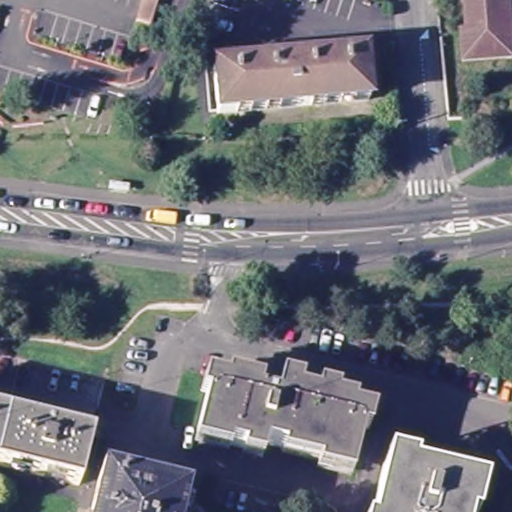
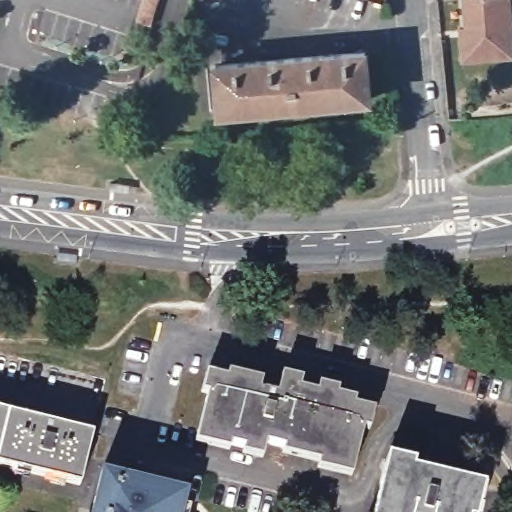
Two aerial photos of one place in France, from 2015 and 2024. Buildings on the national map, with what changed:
unchanged [(150,24),(136,20),(141,0),(157,0),(150,24)]
unchanged [(466,28),(464,0),(507,0),(512,55),(462,59),(461,41),(460,29),(466,28)]
unchanged [(362,52),(368,100),(217,113),(214,65),(362,52)]
unchanged [(357,474),(342,471),(342,474),(320,468),(321,462),(271,449),(269,455),(216,442),(217,437),(199,433),(214,378),(262,390),(260,395),(280,400),(282,390),(340,404),(338,409),(370,416),(357,474)]
unchanged [(77,482),(0,465),(0,411),(90,432),(77,482)]
unchanged [(468,512),(372,512),(385,467),(474,491),(468,512)]
unchanged [(188,512),(94,512),(102,475),(192,496),(188,512)]

